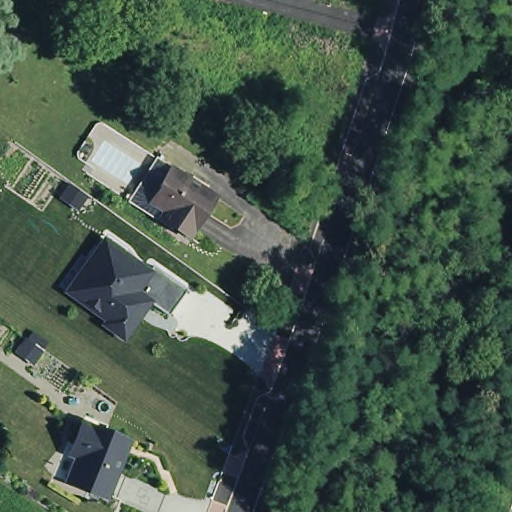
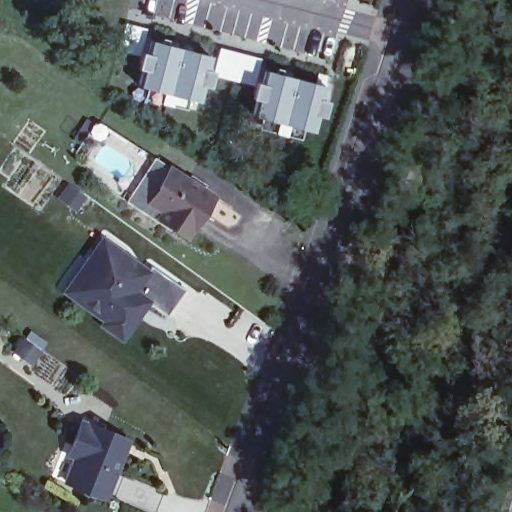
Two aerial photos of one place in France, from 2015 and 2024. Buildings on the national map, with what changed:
new [(151,43),(208,56),(198,99),(138,85),(151,43)]
new [(321,86),(311,129),(254,115),(264,71),(321,86)]
unchanged [(188,230),(186,234),(143,204),(159,180),(171,162),(186,171),(231,200),(218,220),(205,241),(188,230)]
unchanged [(168,317),(151,304),(124,342),(99,324),(101,320),(63,293),(104,234),(151,270),(154,266),(186,289),(168,317)]
unchanged [(84,453),(79,449),(81,443),(89,422),(131,434),(136,437),(131,449),(120,479),(116,494),(75,480),(84,453)]

